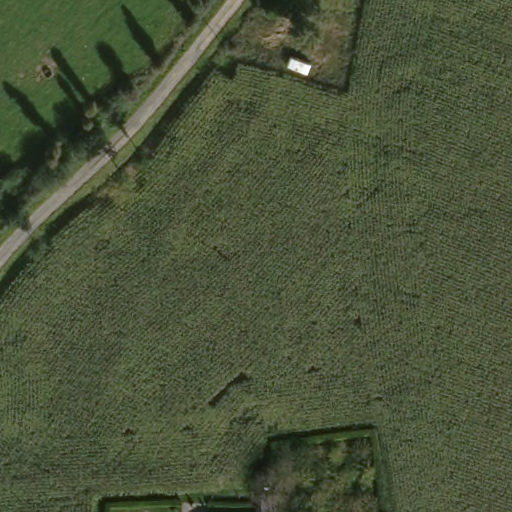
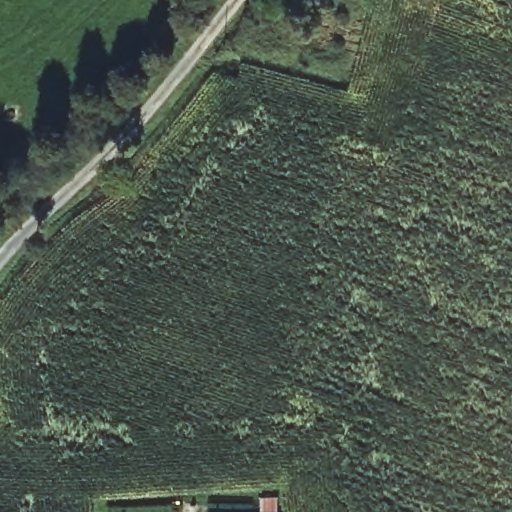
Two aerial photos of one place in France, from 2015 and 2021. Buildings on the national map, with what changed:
[]

